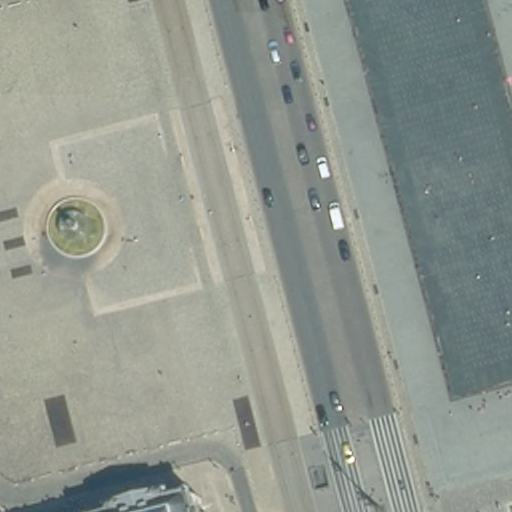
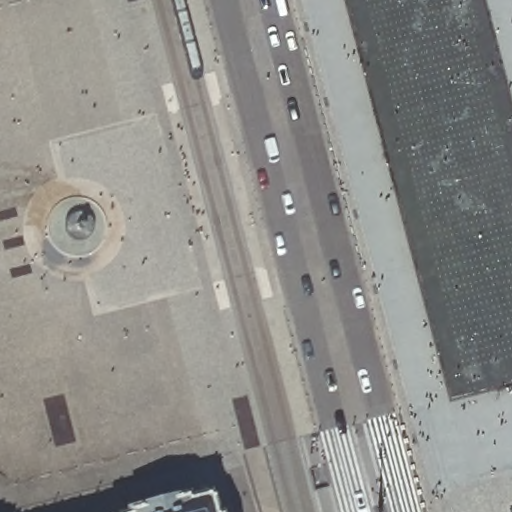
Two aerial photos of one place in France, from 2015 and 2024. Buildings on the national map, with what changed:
unchanged [(178,501),(199,496),(199,498),(201,497),(204,512),(121,512),(177,497),(178,501)]

